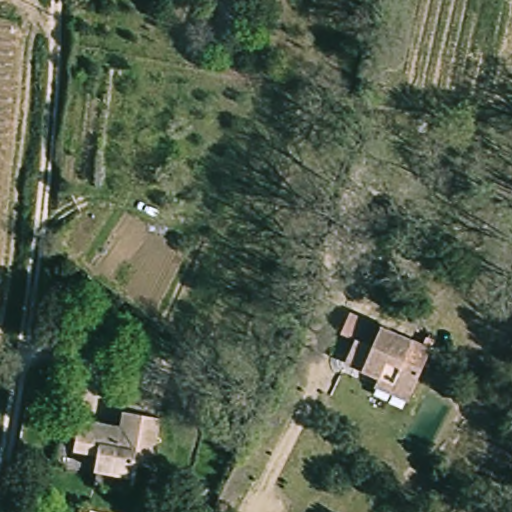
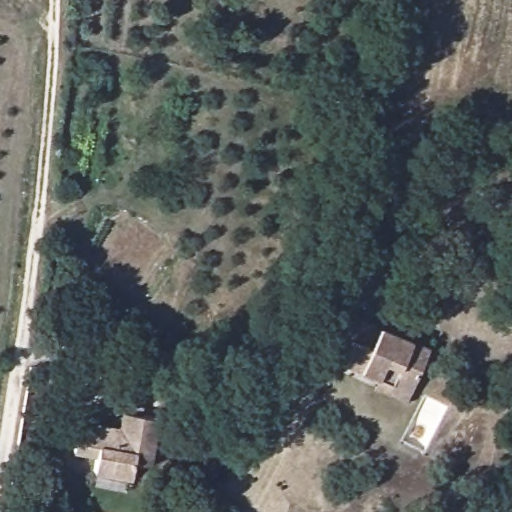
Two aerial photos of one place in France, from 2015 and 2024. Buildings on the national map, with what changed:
unchanged [(370,387),(376,373),(341,358),(351,337),(336,329),(345,309),(429,346),(409,389),(403,403),(370,387)]
unchanged [(95,457),(73,454),(77,422),(117,428),(120,411),(158,416),(150,465),(133,462),(132,474),(93,470),(95,457)]

